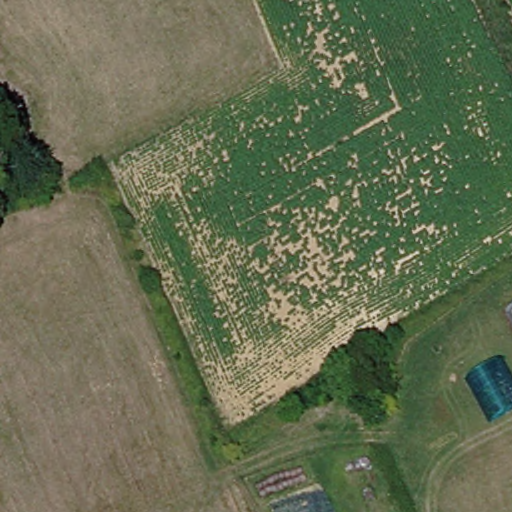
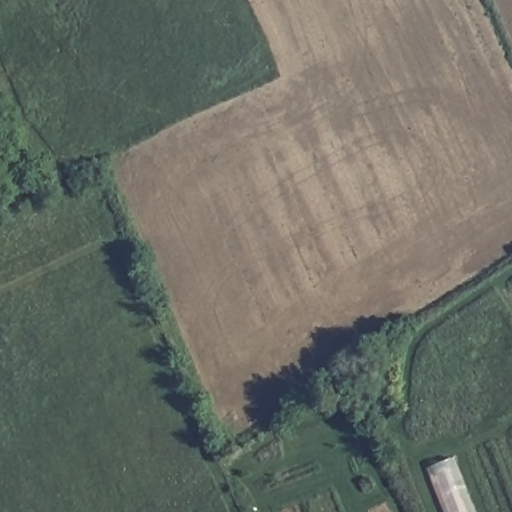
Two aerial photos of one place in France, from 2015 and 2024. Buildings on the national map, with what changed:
[]

